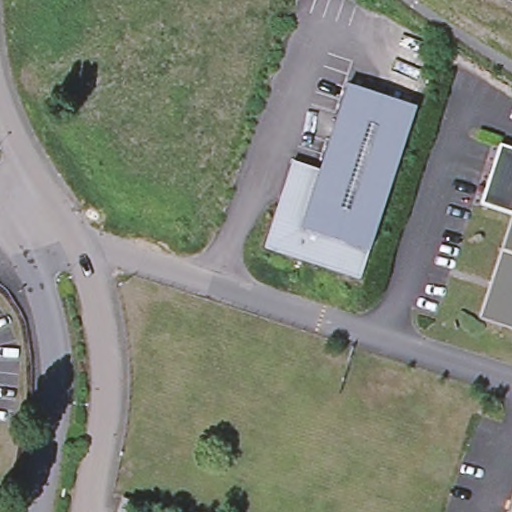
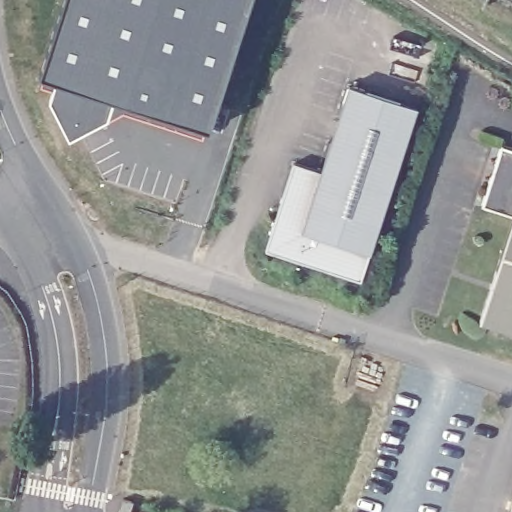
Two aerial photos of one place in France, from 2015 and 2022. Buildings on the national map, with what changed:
new [(251,0),(209,131),(114,100),(56,81),(39,76),(63,0),(251,0)]
new [(56,81),(114,100),(108,121),(69,140),(49,102),(56,81)]
unchanged [(310,264),(265,250),(294,163),(321,172),(349,86),(373,94),(310,264)]
unchanged [(373,94),(417,109),(360,281),(310,264),(373,94)]
unchanged [(479,203),(499,140),(512,144),(512,326),(510,325),(479,315),(491,272),(508,211),(479,203)]
unchanged [(512,489),(512,512),(505,512),(512,489)]
unchanged [(132,503),(129,512),(118,512),(122,500),(132,503)]

